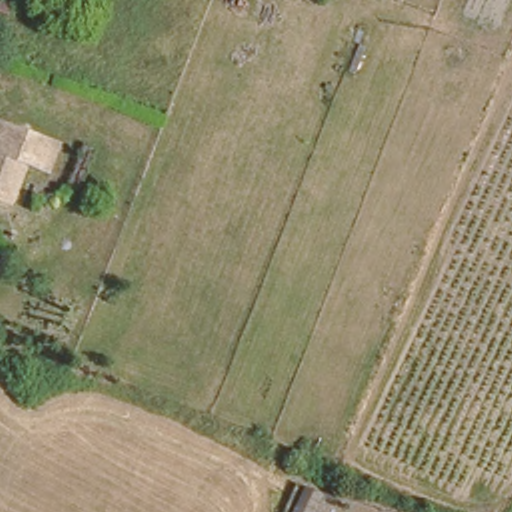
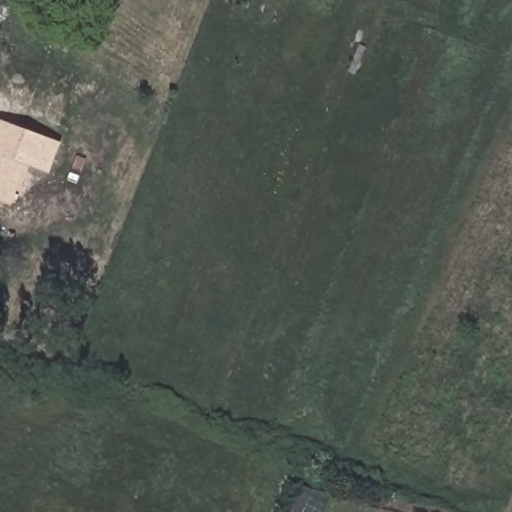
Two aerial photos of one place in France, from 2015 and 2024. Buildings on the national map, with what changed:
unchanged [(0,201),(0,124),(3,125),(55,145),(45,171),(23,162),(6,204),(0,201)]

